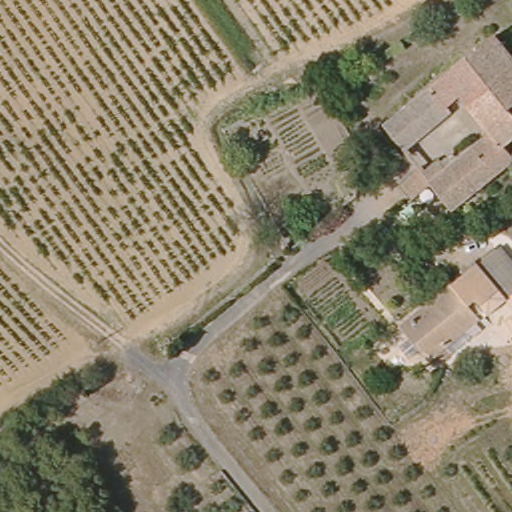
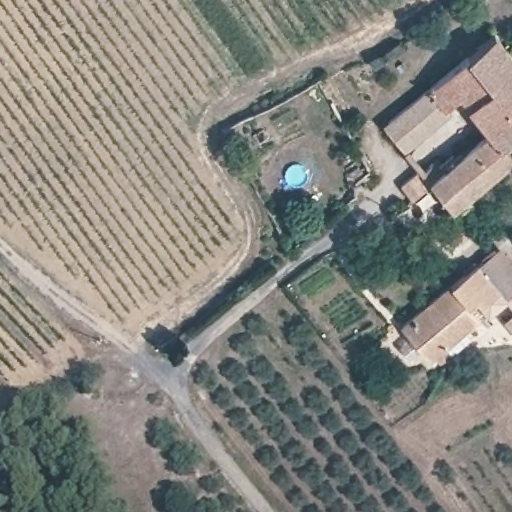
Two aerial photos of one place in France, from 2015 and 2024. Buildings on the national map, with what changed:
unchanged [(475,52),(500,33),(512,48),(512,99),(500,83),(475,52)]
unchanged [(500,83),(474,103),(466,94),(451,105),(434,85),(475,52),(500,83)]
unchanged [(512,137),(510,139),(500,125),(494,131),(474,103),(500,83),(512,99),(512,137)]
unchanged [(454,110),(409,147),(389,120),(434,85),(451,105),(454,110)]
unchanged [(452,166),(494,131),(500,125),(510,139),(512,141),(512,160),(455,206),(434,179),(427,170),(444,157),(452,166)]
unchanged [(512,301),(434,363),(406,323),(505,247),(512,256),(512,301)]
unchanged [(512,305),(510,302),(512,301),(512,305)]
unchanged [(512,317),(512,330),(505,322),(512,317)]

